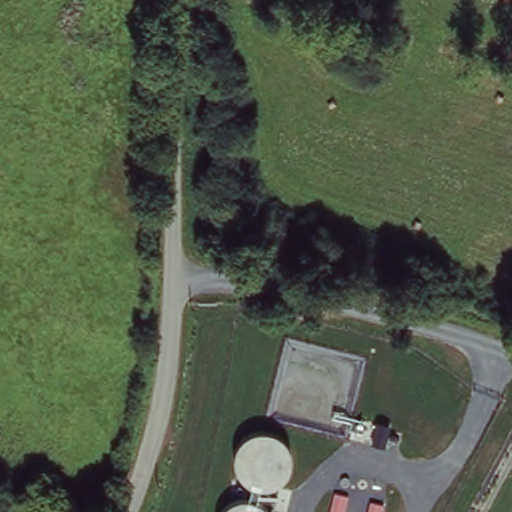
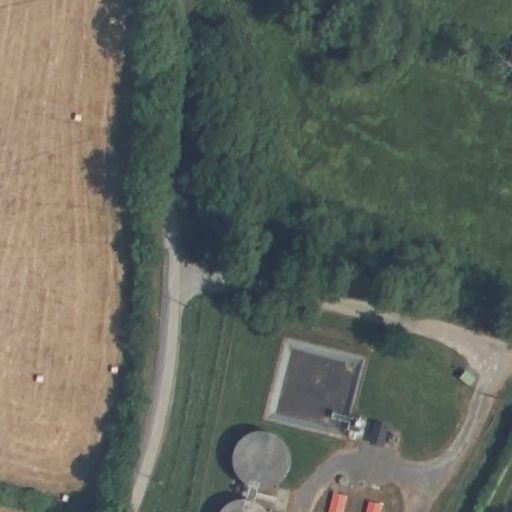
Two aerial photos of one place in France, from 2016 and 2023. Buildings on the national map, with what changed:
unchanged [(347,495),(343,512),(330,512),(335,492),(347,495)]
unchanged [(384,504),(382,512),(367,512),(370,500),(384,504)]

